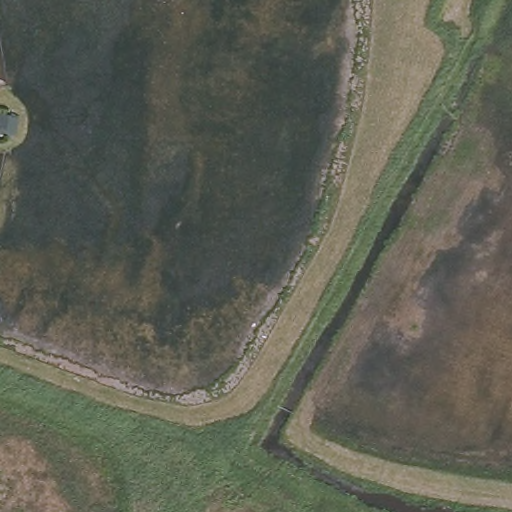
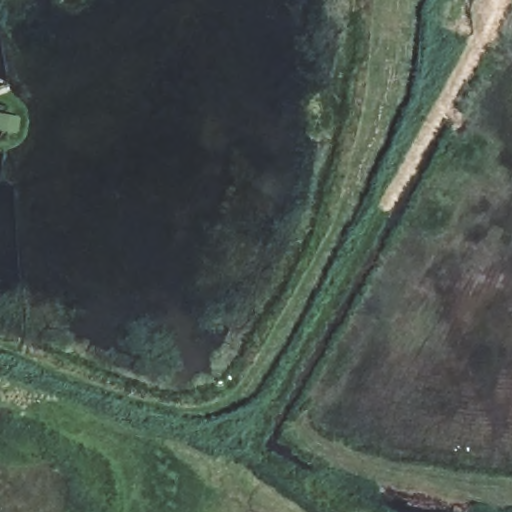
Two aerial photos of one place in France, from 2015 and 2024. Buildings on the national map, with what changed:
unchanged [(9,108),(0,125),(0,105),(9,108)]

